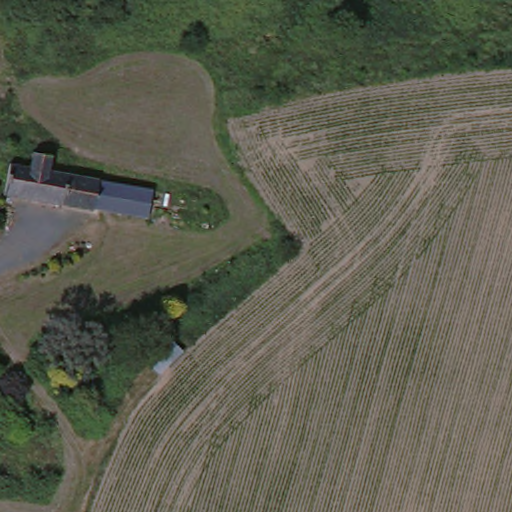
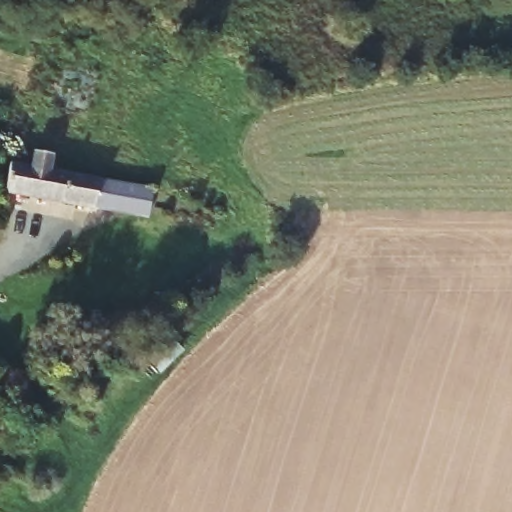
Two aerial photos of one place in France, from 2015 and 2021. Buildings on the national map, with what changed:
unchanged [(24,167),(33,169),(36,154),(53,157),(51,172),(68,175),(98,181),(153,192),(148,217),(93,208),(93,209),(63,204),(6,194),(13,164),(24,167)]
unchanged [(0,369),(0,363),(3,367),(0,369)]

